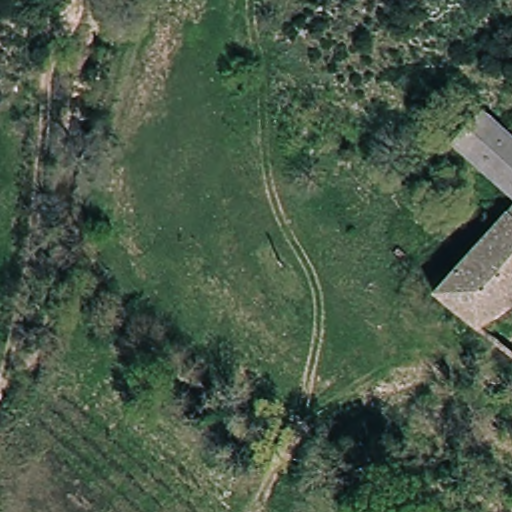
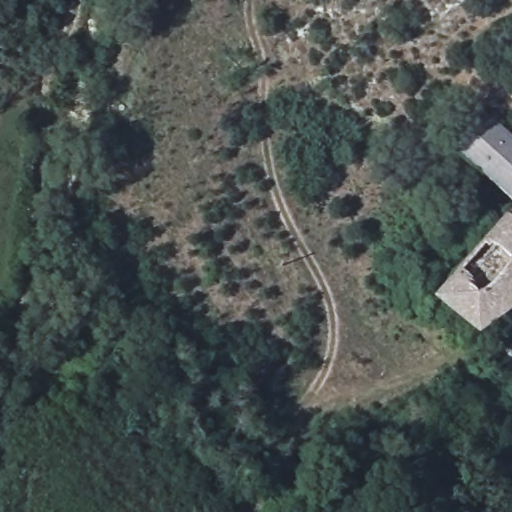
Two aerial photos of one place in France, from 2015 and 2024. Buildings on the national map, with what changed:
unchanged [(448,146),(481,110),(512,137),(512,203),(448,146)]
unchanged [(427,305),(505,218),(512,224),(512,306),(473,340),(427,305)]

